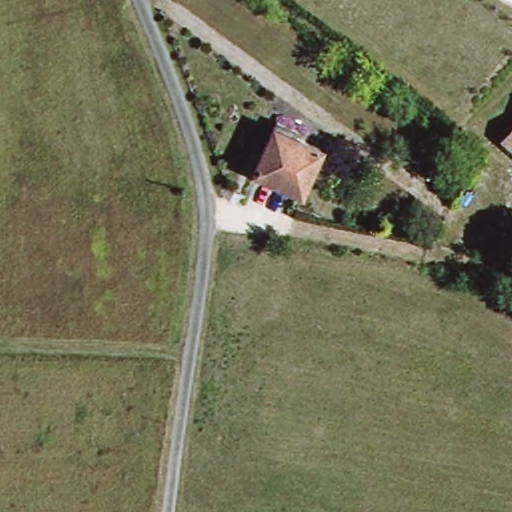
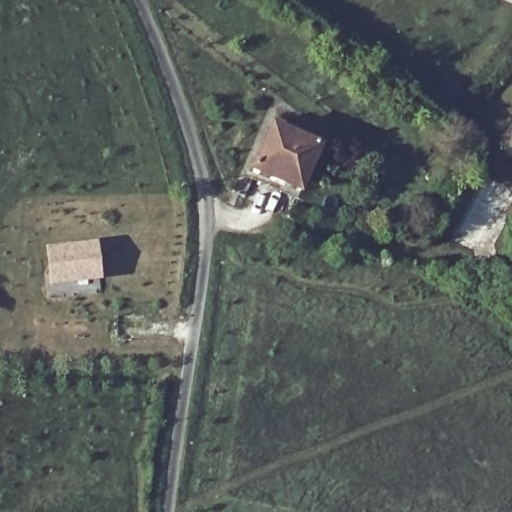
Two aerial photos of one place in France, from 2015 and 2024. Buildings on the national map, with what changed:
unchanged [(246,172),(271,119),(294,129),(289,138),(317,150),(296,195),(246,172)]
unchanged [(498,139),(512,122),(512,150),(498,139)]
new [(100,243),(104,281),(52,287),(47,249),(100,243)]

